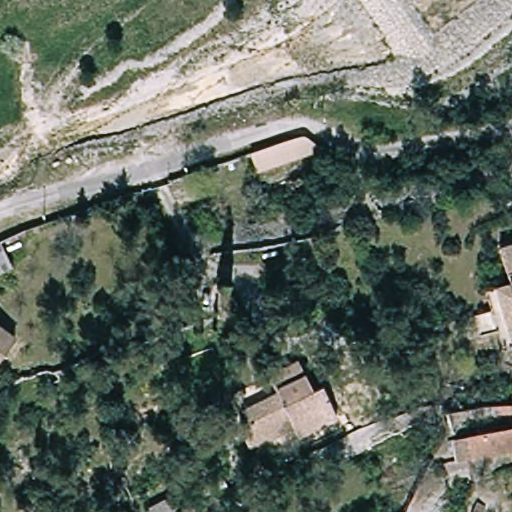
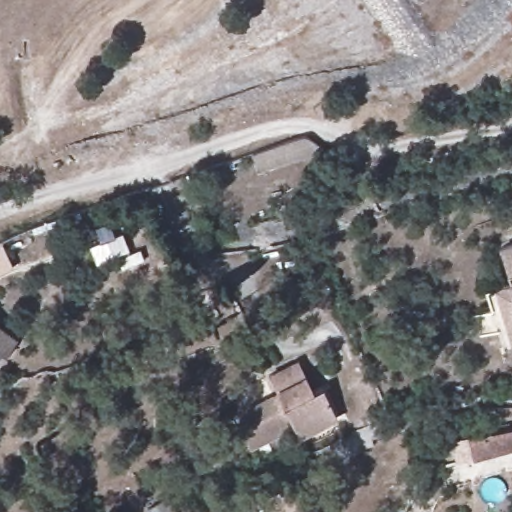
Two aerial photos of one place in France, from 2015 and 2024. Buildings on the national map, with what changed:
unchanged [(251,151),(294,139),(303,162),(260,175),(251,151)]
unchanged [(490,288),(504,284),(493,250),(512,245),(512,338),(505,340),(490,288)]
unchanged [(15,343),(0,363),(0,332),(15,343)]
unchanged [(275,403),(261,372),(291,359),(305,389),(314,385),(328,417),(289,434),(284,424),(273,403),(275,403)]
unchanged [(231,422),(273,403),(284,424),(241,444),(231,422)]
unchanged [(511,427),(512,431),(512,451),(470,461),(470,457),(465,458),(466,466),(442,471),(441,462),(452,460),(452,458),(450,439),(453,438),(464,436),(511,427)]

